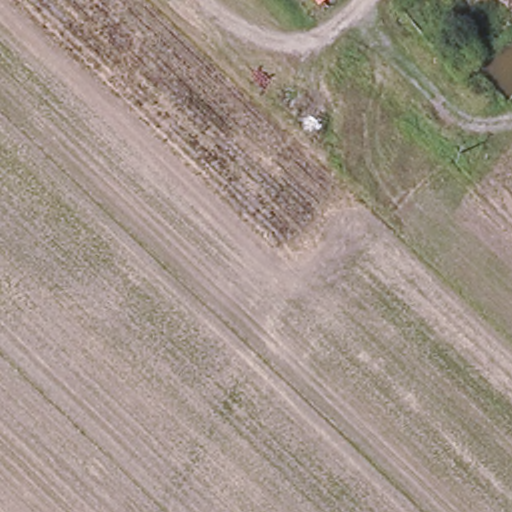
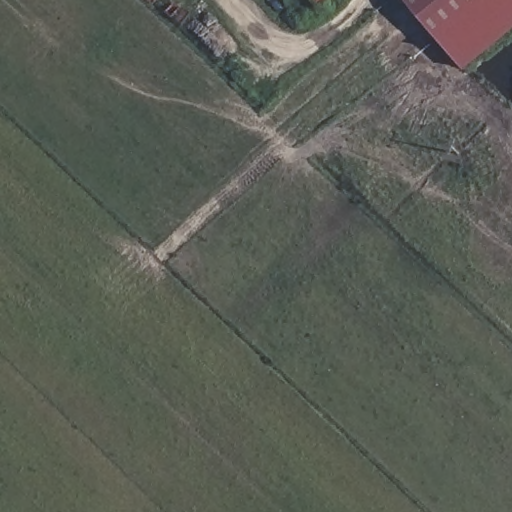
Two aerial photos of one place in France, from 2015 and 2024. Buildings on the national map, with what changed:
unchanged [(322,6),(317,0),(328,0),(322,6)]
new [(465,67),(408,0),(512,0),(512,29),(465,67)]

